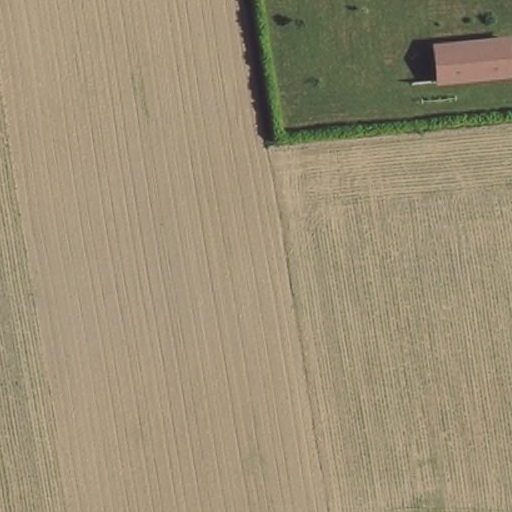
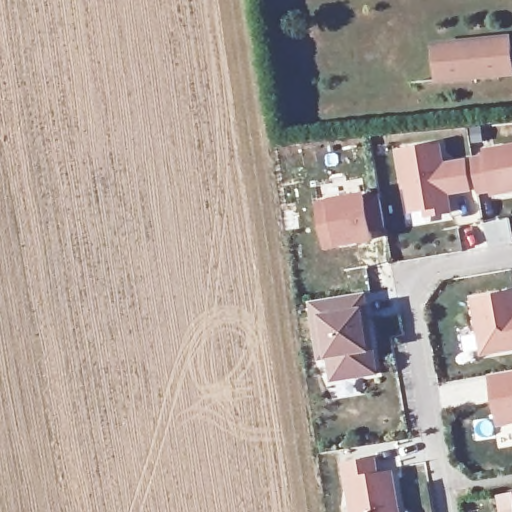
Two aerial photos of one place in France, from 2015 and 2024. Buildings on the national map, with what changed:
unchanged [(433,41),(512,34),(512,73),(437,80),(433,41)]
new [(441,166),(470,163),(470,158),(483,156),(483,147),(512,144),(512,194),(491,196),(490,191),(450,195),(452,215),(424,216),(424,212),(409,214),(405,180),(396,181),(393,151),(438,146),(441,166)]
new [(316,206),(330,202),(362,198),(364,203),(375,201),(381,228),(370,230),(372,237),(339,243),(322,247),(316,206)]
new [(362,291),(376,378),(330,384),(327,362),(317,362),(308,299),(362,291)]
new [(512,347),(475,349),(472,298),(512,295),(512,347)]
new [(512,422),(494,423),(490,372),(512,371),(512,422)]
new [(396,512),(352,512),(350,495),(342,496),(337,463),(377,457),(380,474),(390,473),(396,512)]
new [(512,512),(499,512),(497,494),(512,493),(512,512)]

